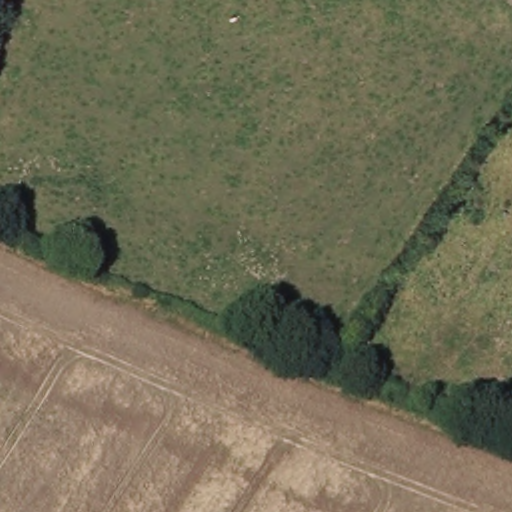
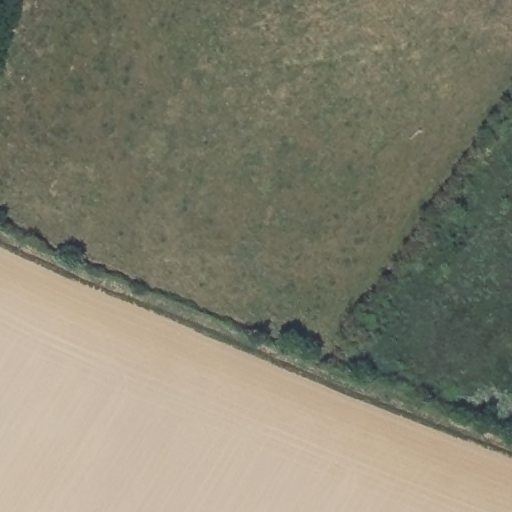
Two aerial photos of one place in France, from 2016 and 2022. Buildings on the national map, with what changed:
[]

